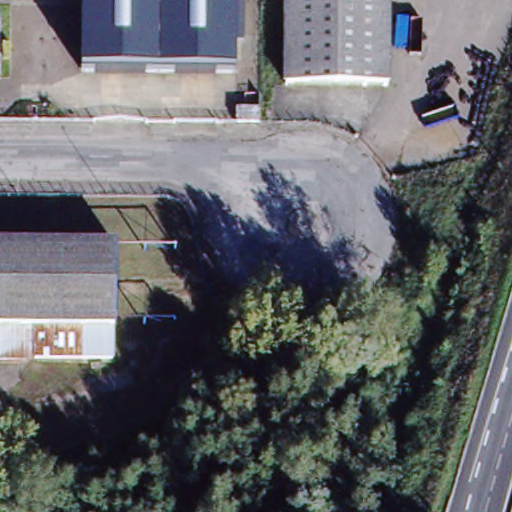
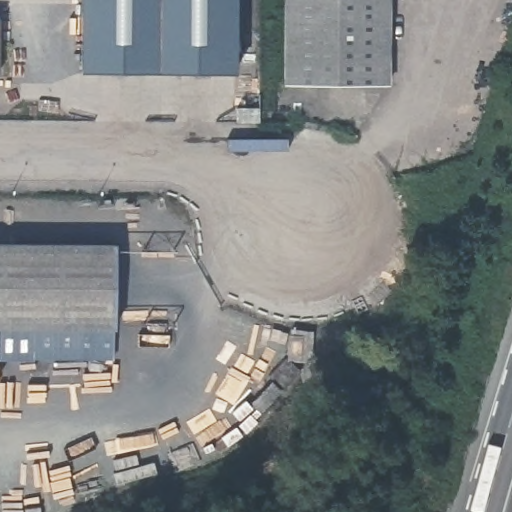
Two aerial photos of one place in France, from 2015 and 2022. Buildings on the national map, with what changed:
unchanged [(239,40),(230,40),(229,72),(75,70),(76,0),(239,0),(239,40)]
unchanged [(388,85),(284,85),(285,0),(389,0),(388,85)]
unchanged [(259,110),(259,123),(237,122),(237,110),(259,110)]
unchanged [(115,324),(114,324),(0,323),(0,239),(116,240),(115,324)]
unchanged [(0,354),(0,323),(114,324),(114,355),(0,354)]

